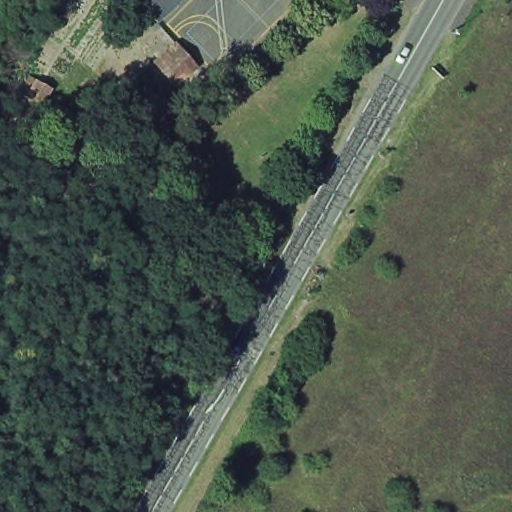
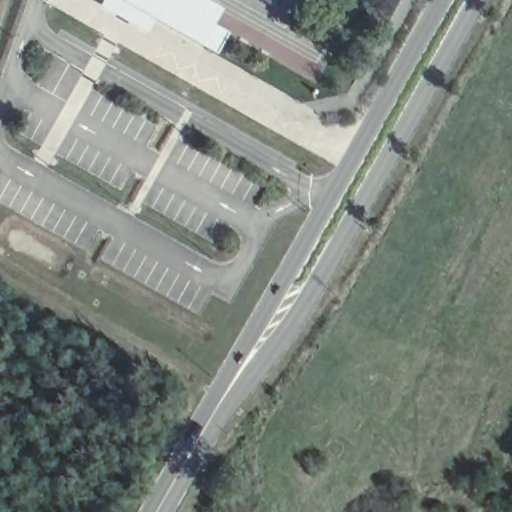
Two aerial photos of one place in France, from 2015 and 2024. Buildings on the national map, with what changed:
new [(214,25),(229,33),(217,54),(202,46),(155,19),(148,30),(147,32),(100,6),(102,0),(205,0),(222,9),(214,25)]
demolished [(178,4),(160,20),(142,0),(175,0),(178,4)]
demolished [(161,62),(179,46),(183,43),(215,80),(212,84),(194,100),(161,62)]

